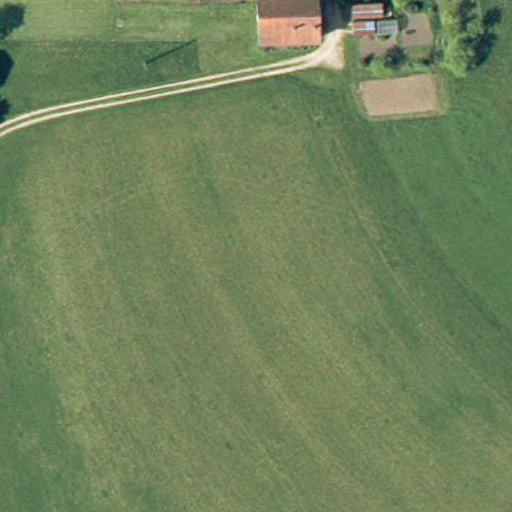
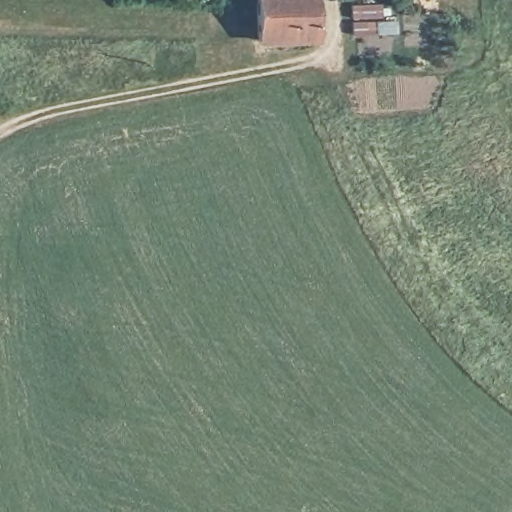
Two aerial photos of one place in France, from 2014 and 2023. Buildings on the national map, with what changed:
unchanged [(253,27),(252,0),(313,0),(314,36),(254,38),(253,27)]
unchanged [(388,7),(363,9),(362,0),(388,0),(388,7)]
unchanged [(383,28),(356,29),(355,19),(383,18),(383,28)]

